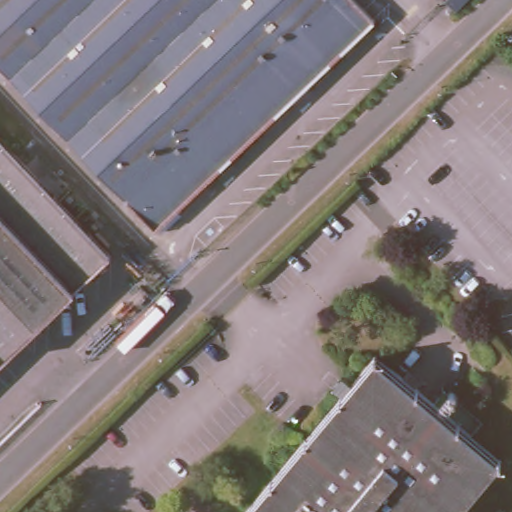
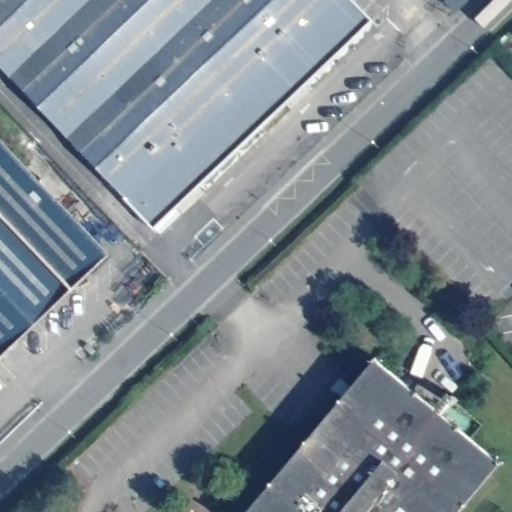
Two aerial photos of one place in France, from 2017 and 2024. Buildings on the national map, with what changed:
unchanged [(372,17),(157,222),(0,62),(0,0),(356,0),(372,17)]
unchanged [(111,249),(0,356),(0,133),(111,249)]
unchanged [(354,382),(376,356),(501,462),(459,512),(245,512),(344,393),(332,383),(341,372),(354,382)]

